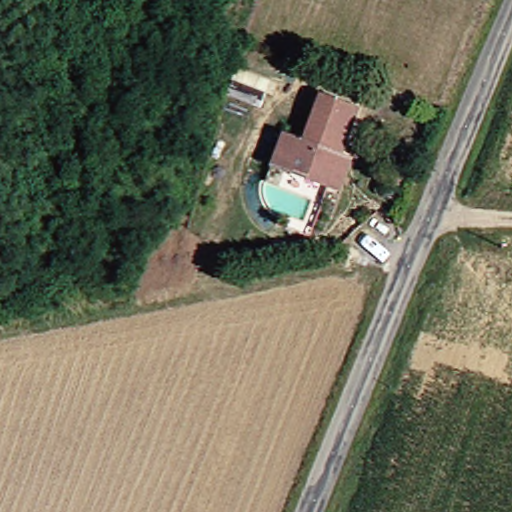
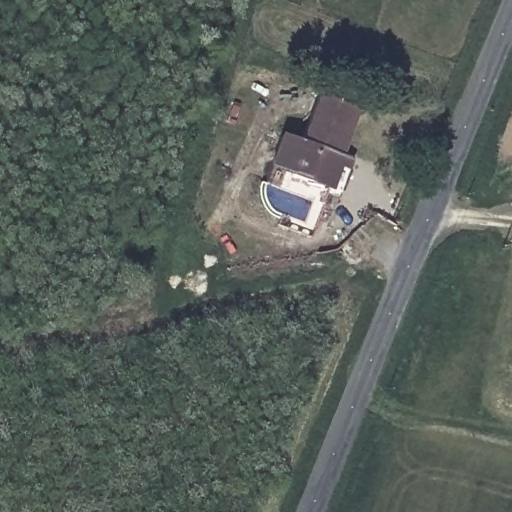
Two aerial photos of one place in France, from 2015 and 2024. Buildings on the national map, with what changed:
unchanged [(316,187),(275,173),(260,167),(270,136),(286,141),(290,144),(307,93),(343,107),(327,155),(338,159),(328,191),(316,187)]

